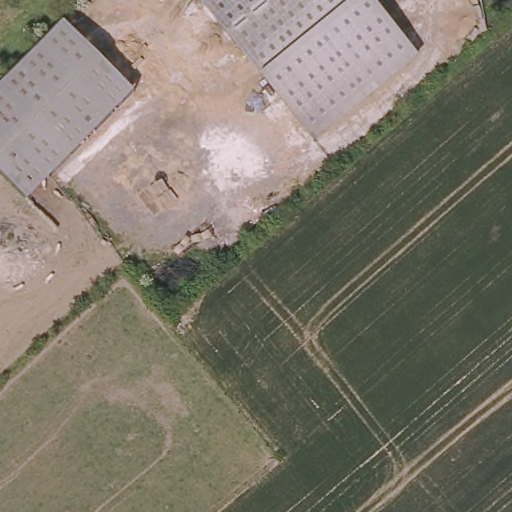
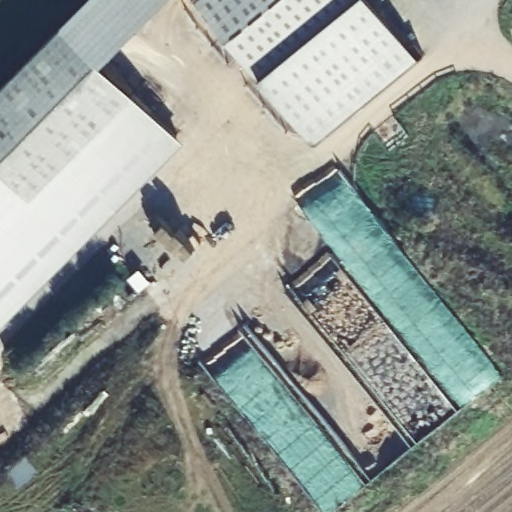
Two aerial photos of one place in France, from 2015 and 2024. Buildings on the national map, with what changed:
new [(101,64),(62,23),(85,0),(162,0),(101,64)]
unchanged [(394,41),(297,120),(290,112),(199,0),(360,0),(394,41)]
unchanged [(131,95),(23,200),(0,176),(0,83),(57,28),(62,23),(131,95)]
unchanged [(394,41),(409,60),(312,139),(297,120),(394,41)]
new [(181,143),(0,328),(0,175),(1,176),(23,200),(131,95),(181,143)]

